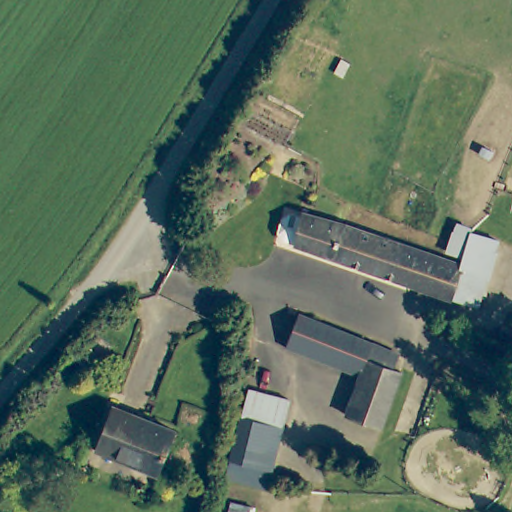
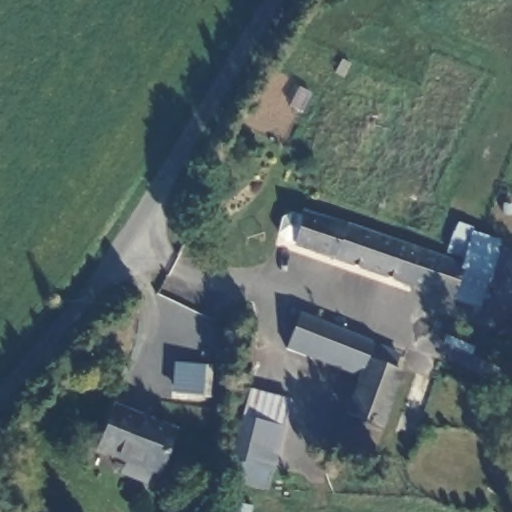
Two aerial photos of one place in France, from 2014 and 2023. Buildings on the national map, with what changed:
unchanged [(331,222),(461,264),(449,297),(295,247),(295,246),(284,242),(279,236),(284,220),(292,216),(303,220),(304,216),(331,222)]
unchanged [(485,282),(477,306),(449,297),(461,264),(463,255),(447,249),(452,232),(469,238),(471,232),(499,240),(485,282)]
unchanged [(289,346),(301,312),(403,351),(397,365),(369,356),(362,373),(289,346)]
unchanged [(500,321),(512,326),(512,338),(495,330),(500,321)]
unchanged [(347,411),(362,373),(369,356),(397,365),(405,368),(383,423),(347,411)]
new [(171,359),(204,359),(207,392),(171,389),(171,359)]
unchanged [(294,388),(271,476),(232,466),(255,378),(294,388)]
unchanged [(97,449),(115,406),(175,430),(158,473),(97,449)]

